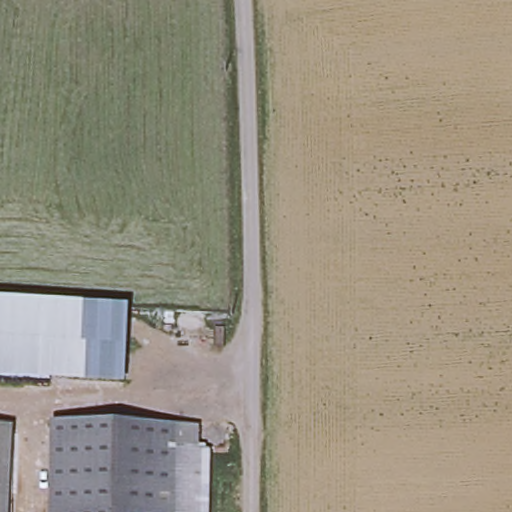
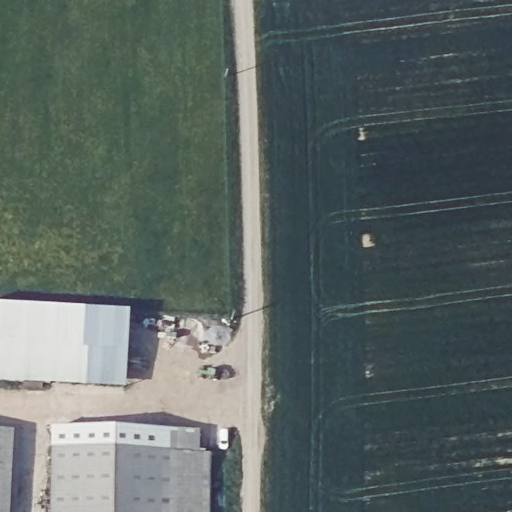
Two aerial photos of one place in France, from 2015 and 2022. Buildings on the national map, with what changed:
unchanged [(0,380),(0,305),(31,307),(127,312),(124,386),(0,380)]
unchanged [(50,512),(52,427),(173,429),(198,430),(197,454),(211,455),(209,512),(50,512)]
unchanged [(7,512),(0,512),(0,429),(11,430),(7,512)]

